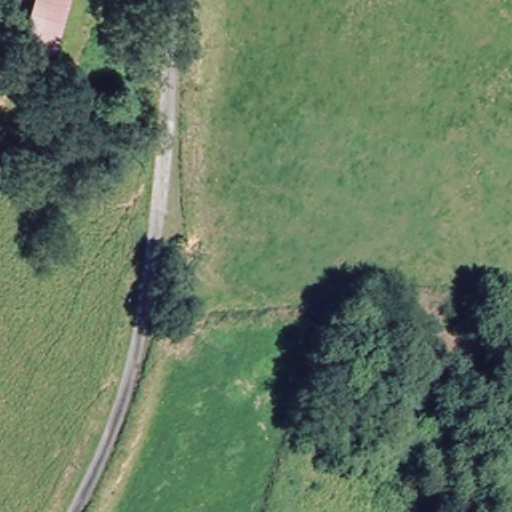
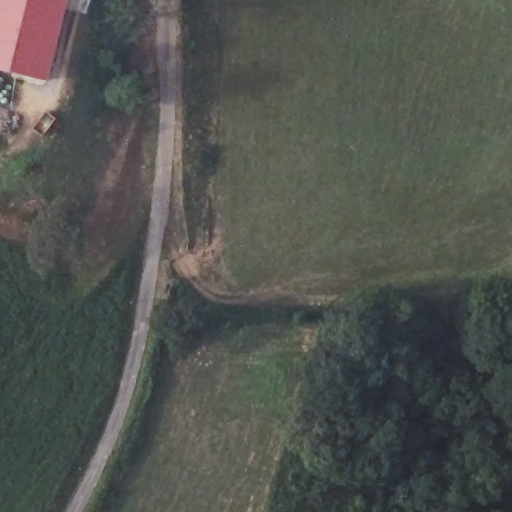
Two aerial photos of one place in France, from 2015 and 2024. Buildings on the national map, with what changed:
new [(67,0),(47,83),(0,71),(0,0),(67,0)]
demolished [(40,0),(73,0),(58,51),(45,48),(28,42),(31,32),(40,0)]

